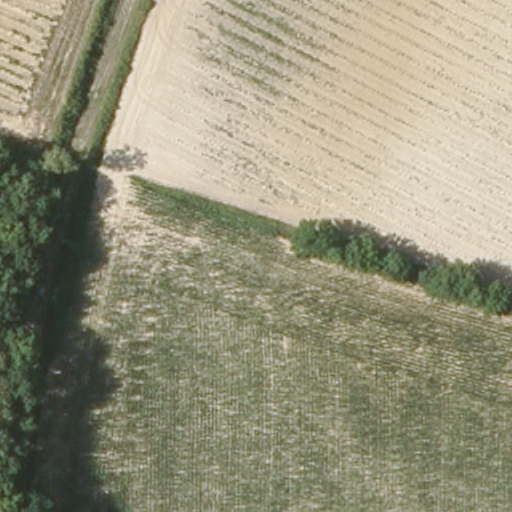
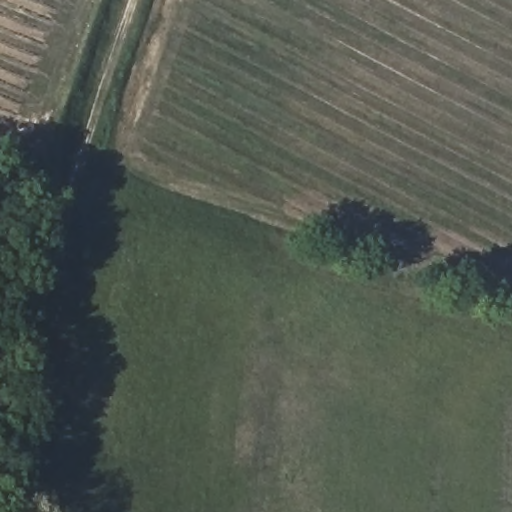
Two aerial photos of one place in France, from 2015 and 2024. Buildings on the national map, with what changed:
[]

